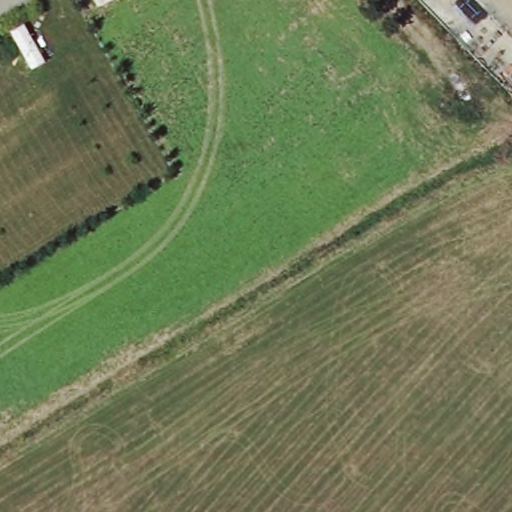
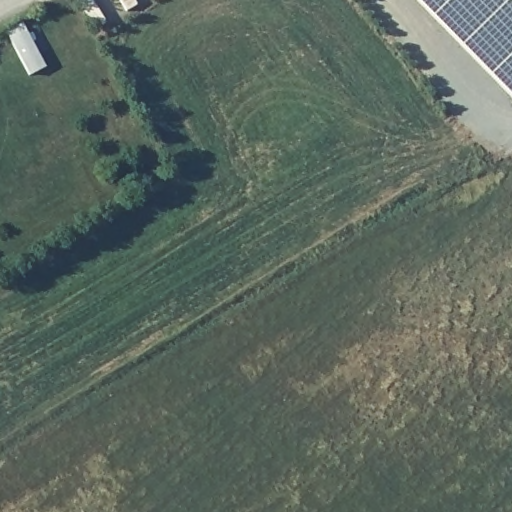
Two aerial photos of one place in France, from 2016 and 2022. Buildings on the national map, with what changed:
new [(512,100),(415,0),(509,0),(512,3),(512,100)]
demolished [(451,36),(417,0),(476,0),(483,7),(451,36)]

